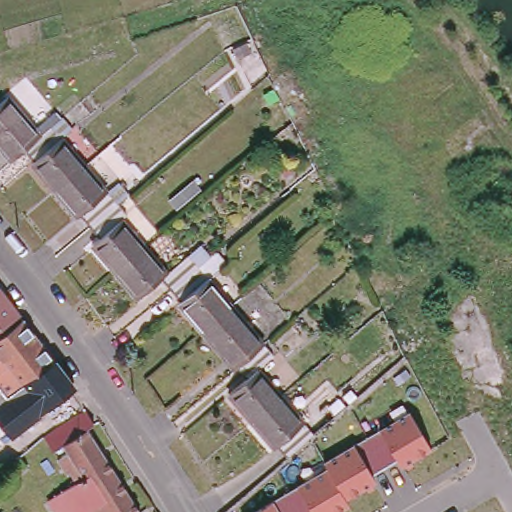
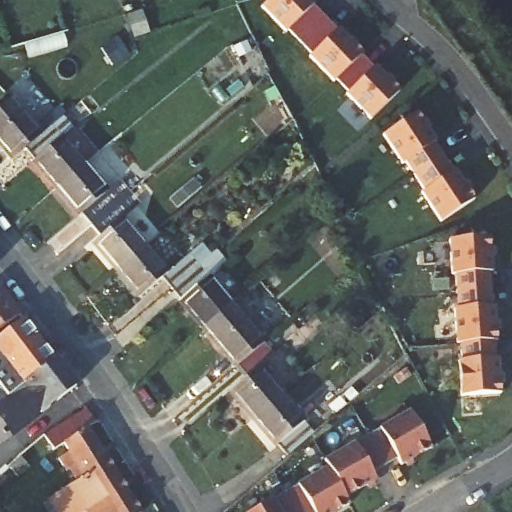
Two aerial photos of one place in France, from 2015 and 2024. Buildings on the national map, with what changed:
new [(403,87),(371,116),(260,0),(310,0),(403,87)]
new [(467,200),(435,216),(387,125),(417,111),(467,200)]
unchanged [(16,145),(0,159),(0,113),(23,140),(16,145)]
unchanged [(25,160),(26,158),(16,145),(23,140),(42,124),(75,162),(47,185),(25,160)]
unchanged [(82,222),(71,210),(69,211),(47,185),(75,162),(107,200),(103,204),(82,222)]
unchanged [(85,240),(92,234),(82,222),(103,204),(136,243),(107,266),(85,240)]
new [(502,382),(460,382),(462,235),(495,238),(502,382)]
unchanged [(163,287),(155,276),(132,295),(107,266),(136,243),(160,271),(186,249),(196,260),(187,267),(163,287)]
unchanged [(170,300),(172,297),(163,287),(187,267),(220,306),(193,328),(170,300)]
unchanged [(25,315),(0,332),(0,288),(2,286),(9,295),(25,315)]
unchanged [(230,365),(221,354),(217,356),(193,328),(220,306),(253,345),(230,365)]
unchanged [(49,348),(60,361),(47,370),(45,372),(30,383),(28,384),(19,391),(16,393),(14,395),(2,380),(0,377),(0,341),(27,320),(40,335),(49,348)]
unchanged [(222,391),(240,376),(230,365),(253,345),(264,356),(249,370),(270,395),(243,417),(222,391)]
unchanged [(14,395),(16,393),(19,391),(28,384),(30,383),(45,372),(47,370),(60,361),(61,363),(80,389),(27,428),(2,395),(0,396),(0,377),(2,380),(14,395)]
unchanged [(270,395),(302,433),(278,453),(268,441),(265,442),(243,417),(270,395)]
unchanged [(60,436),(53,440),(52,439),(48,441),(45,435),(48,432),(47,430),(85,406),(94,421),(86,425),(126,490),(118,495),(113,497),(90,512),(86,506),(78,512),(59,512),(48,496),(71,482),(85,475),(60,436)]
unchanged [(411,460),(412,463),(406,466),(405,464),(400,466),(396,461),(370,475),(377,487),(368,492),(365,490),(345,500),(350,506),(338,512),(248,512),(325,466),(322,460),(408,410),(431,450),(411,460)]
unchanged [(0,445),(0,435),(5,442),(8,440),(17,451),(10,459),(7,455),(0,445)]
unchanged [(30,461),(23,453),(31,448),(36,456),(30,461)]
unchanged [(138,512),(90,512),(113,497),(118,495),(126,490),(140,511),(138,512)]

